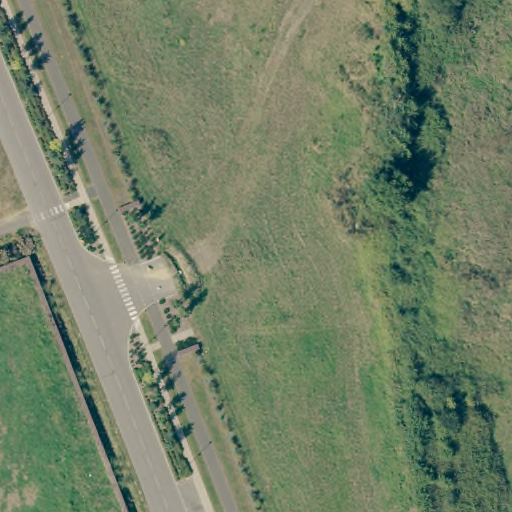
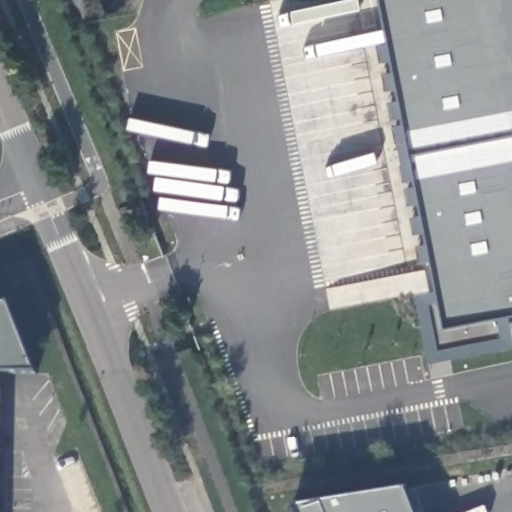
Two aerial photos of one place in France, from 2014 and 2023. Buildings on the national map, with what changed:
new [(507,314),(512,333),(512,346),(430,363),(416,300),(439,297),(381,0),(512,0),(512,313),(507,314)]
new [(0,373),(0,307),(8,304),(35,374),(0,373)]

